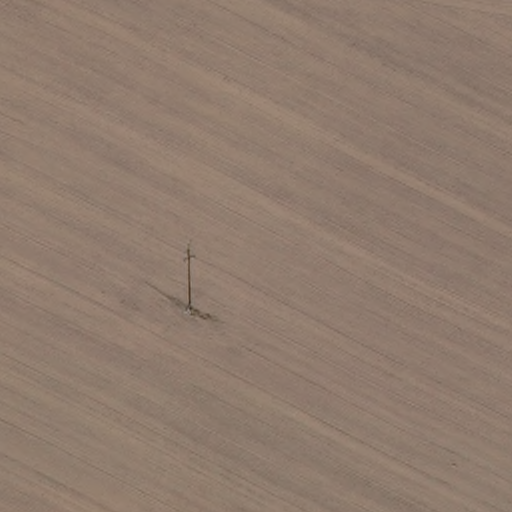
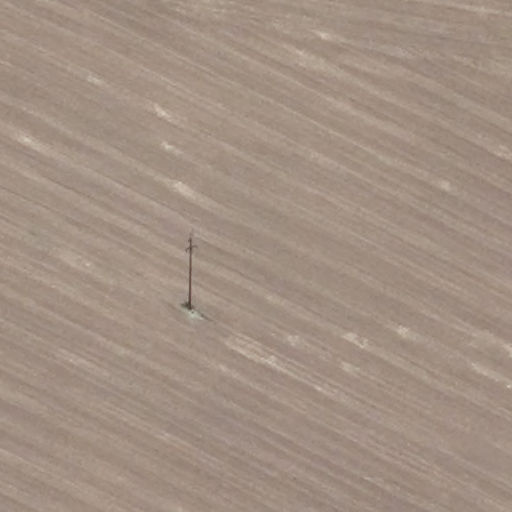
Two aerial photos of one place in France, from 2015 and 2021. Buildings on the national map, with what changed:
[]

